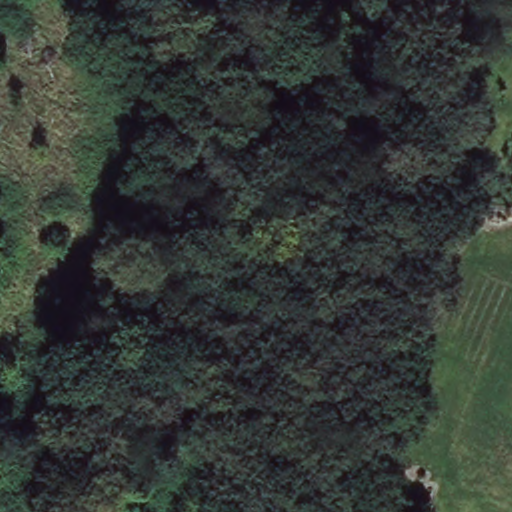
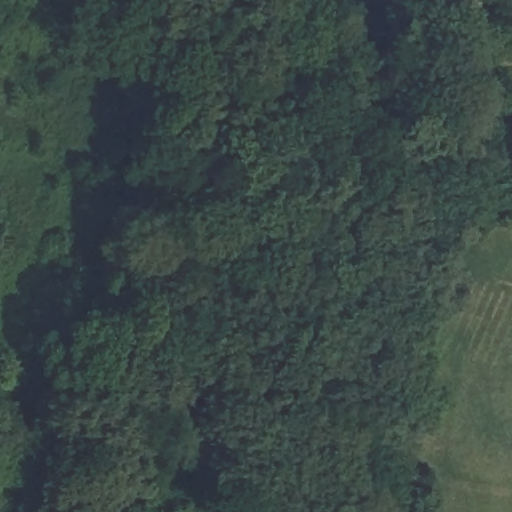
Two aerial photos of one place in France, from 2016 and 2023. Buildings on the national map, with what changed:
unchanged [(143,378),(181,401),(169,423),(131,401),(143,378)]
unchanged [(169,423),(156,446),(119,425),(131,401),(169,423)]
unchanged [(88,418),(82,433),(74,430),(79,415),(88,418)]
unchanged [(257,489),(251,498),(232,487),(239,478),(257,489)]

